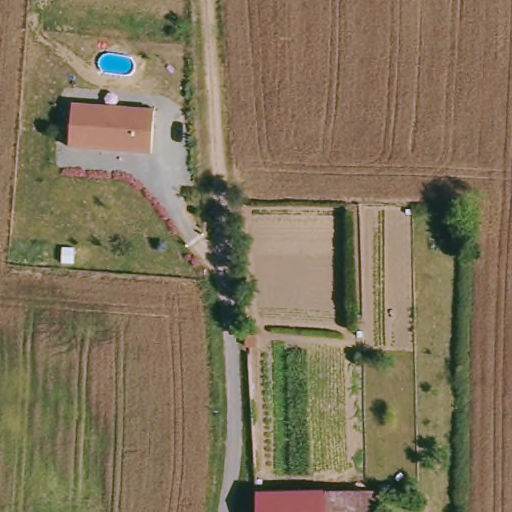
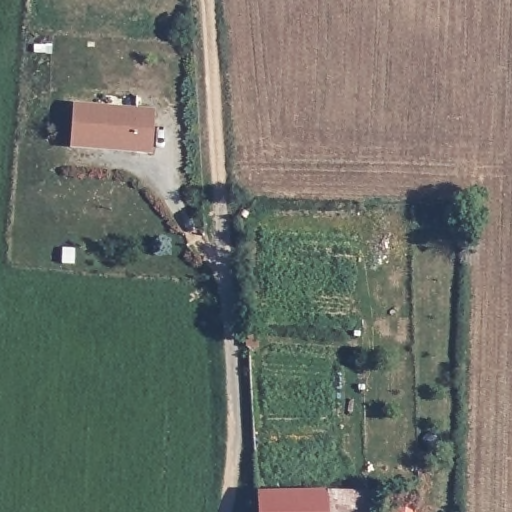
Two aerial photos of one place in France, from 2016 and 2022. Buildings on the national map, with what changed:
unchanged [(153,152),(115,150),(112,147),(106,146),(106,149),(71,147),(75,105),(156,110),(153,152)]
unchanged [(365,488),(373,488),(374,512),(326,512),(325,489),(365,488)]
unchanged [(258,512),(257,490),(325,489),(326,512),(258,512)]

